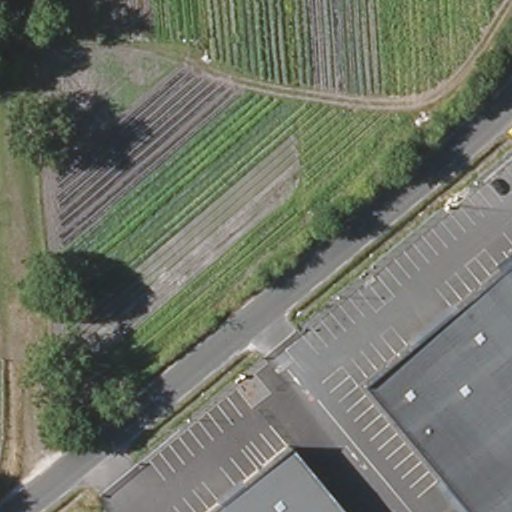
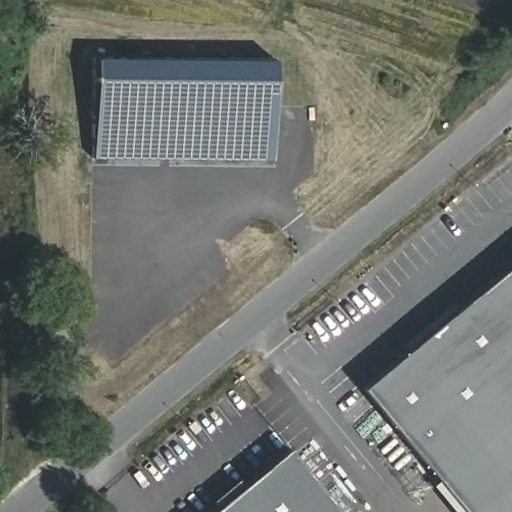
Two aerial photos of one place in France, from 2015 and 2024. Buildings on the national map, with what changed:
new [(89,59),(270,59),(270,159),(89,159),(89,59)]
unchanged [(512,512),(466,512),(362,389),(512,264),(512,512)]
unchanged [(342,512),(213,512),(290,450),(342,512)]

